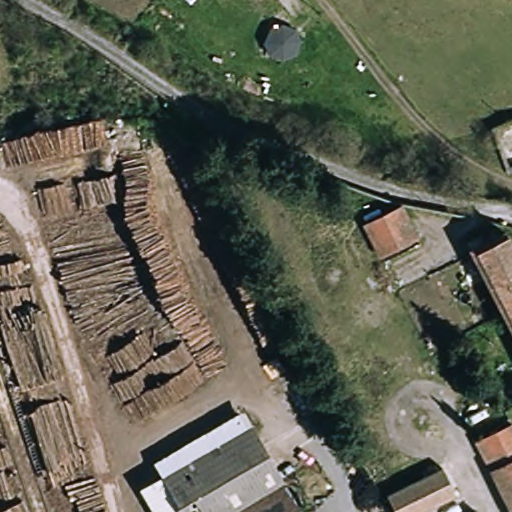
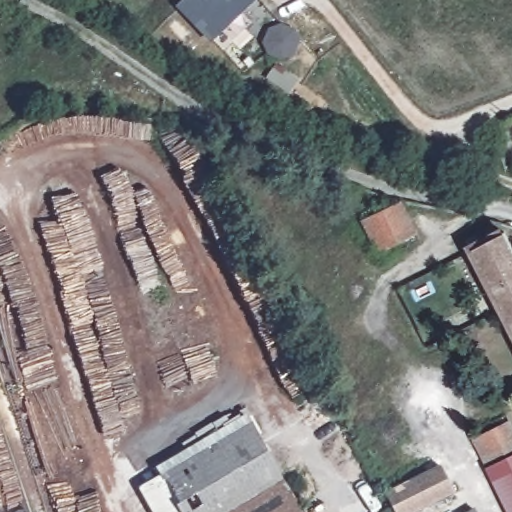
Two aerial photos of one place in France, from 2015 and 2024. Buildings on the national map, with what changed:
new [(255,0),(211,43),(177,6),(183,0),(255,0)]
unchanged [(369,224),(405,209),(420,233),(385,251),(369,224)]
unchanged [(507,231),(512,240),(512,330),(472,249),(507,231)]
unchanged [(477,438),(512,422),(512,509),(477,438)]
unchanged [(159,483),(250,431),(279,483),(223,512),(175,512),(159,483)]
unchanged [(380,493),(442,460),(460,494),(425,512),(391,512),(380,493)]
unchanged [(279,483),(296,512),(223,512),(279,483)]
unchanged [(480,512),(425,512),(460,494),(467,490),(480,512)]

